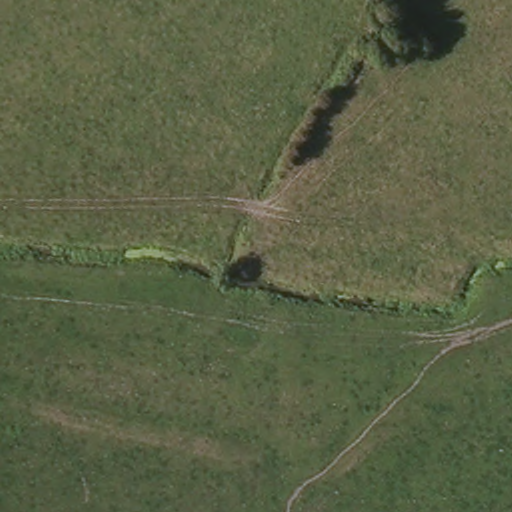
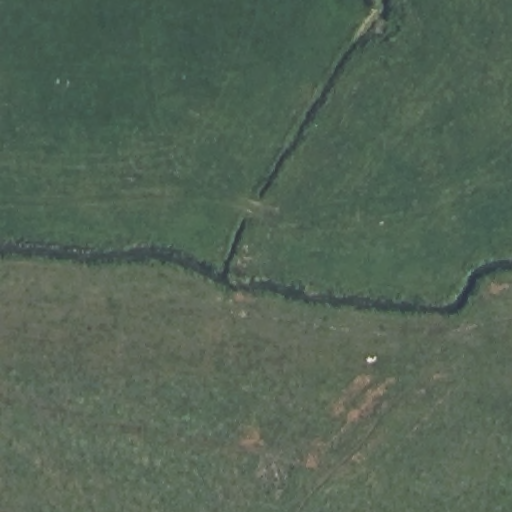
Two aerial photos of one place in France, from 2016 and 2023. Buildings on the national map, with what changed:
[]

